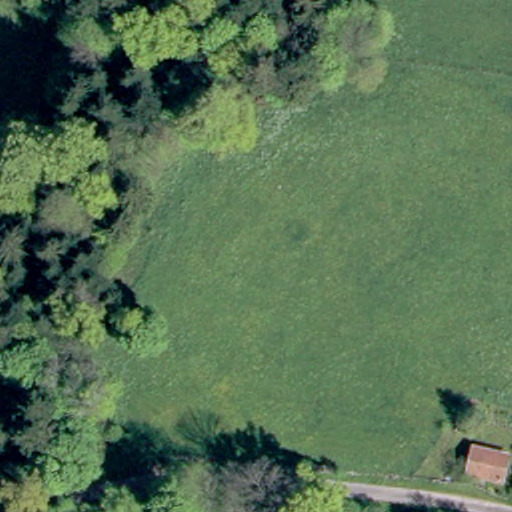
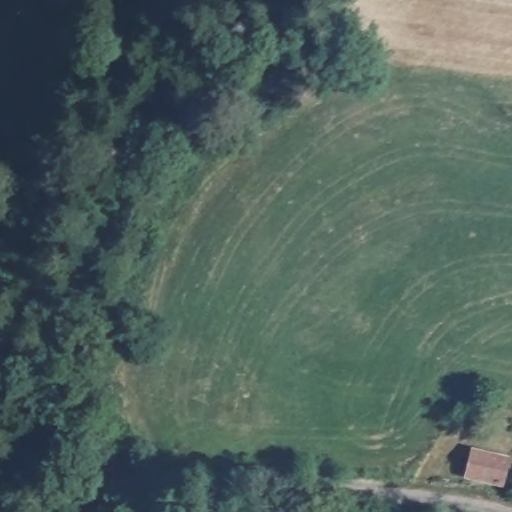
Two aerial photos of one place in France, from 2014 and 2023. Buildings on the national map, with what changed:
unchanged [(504,479),(468,473),(473,447),(508,453),(504,479)]

